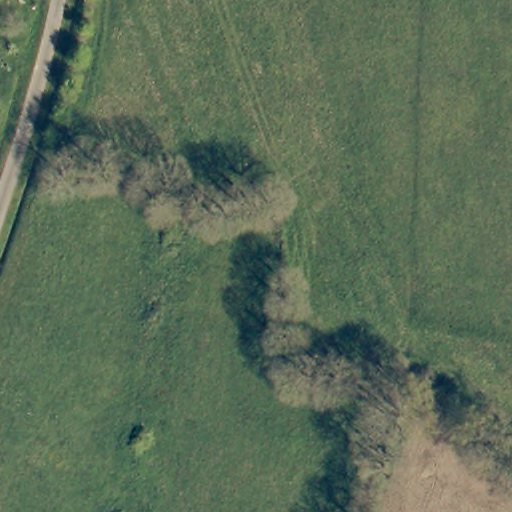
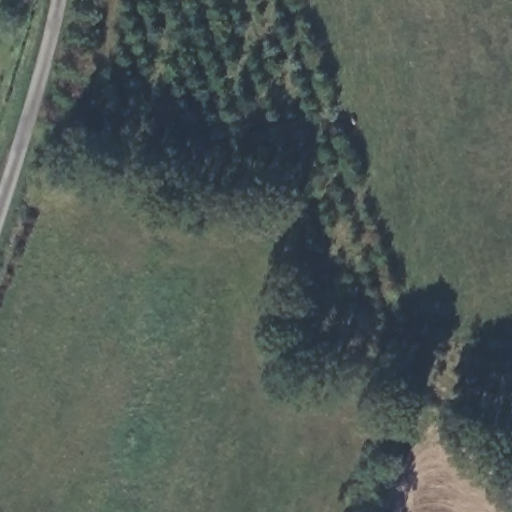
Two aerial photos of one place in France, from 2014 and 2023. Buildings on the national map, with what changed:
[]

